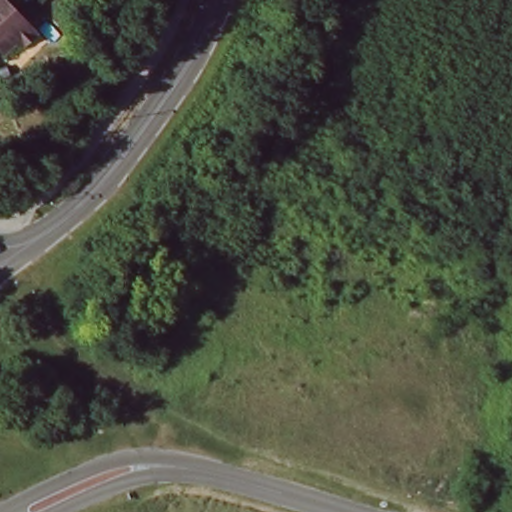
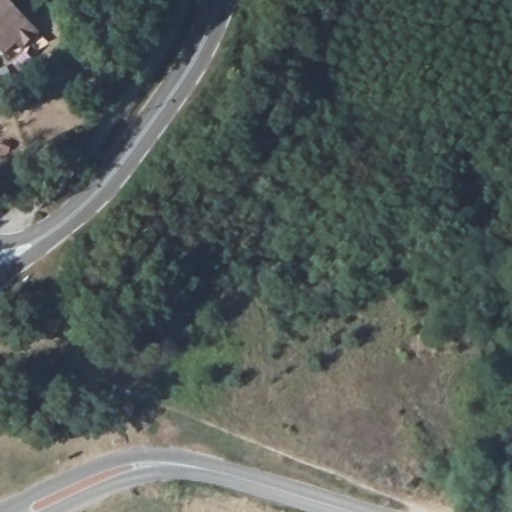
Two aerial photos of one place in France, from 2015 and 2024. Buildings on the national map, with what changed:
unchanged [(21,48),(15,43),(4,53),(0,50),(0,0),(8,0),(39,31),(21,48)]

